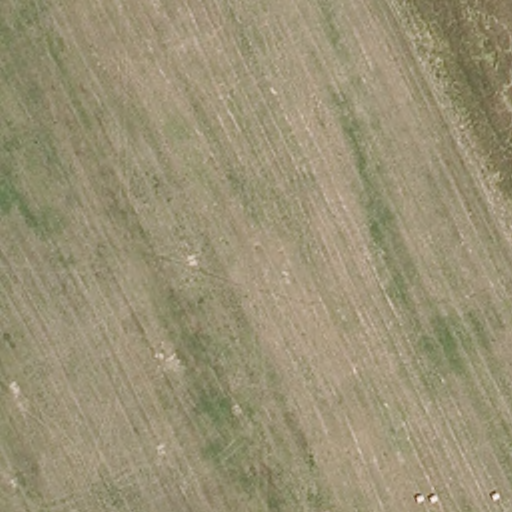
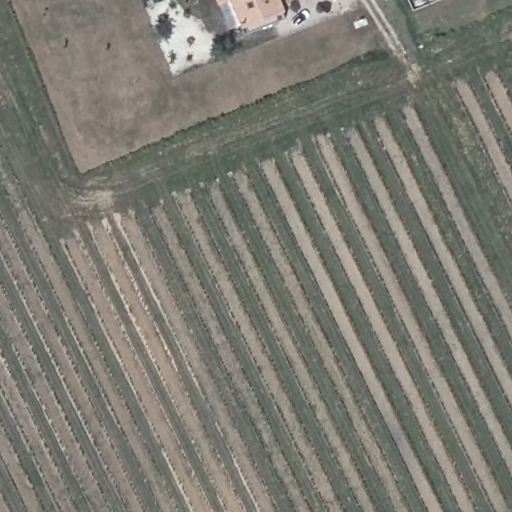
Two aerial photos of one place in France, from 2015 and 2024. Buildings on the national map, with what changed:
new [(219,1),(219,0),(224,0),(219,1)]
new [(286,18),(248,33),(235,0),(279,0),(286,18)]

